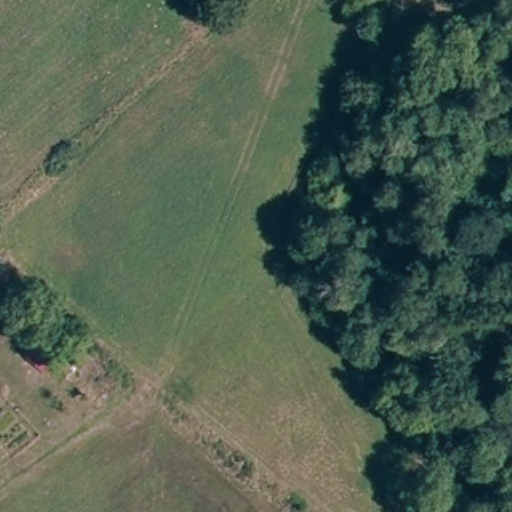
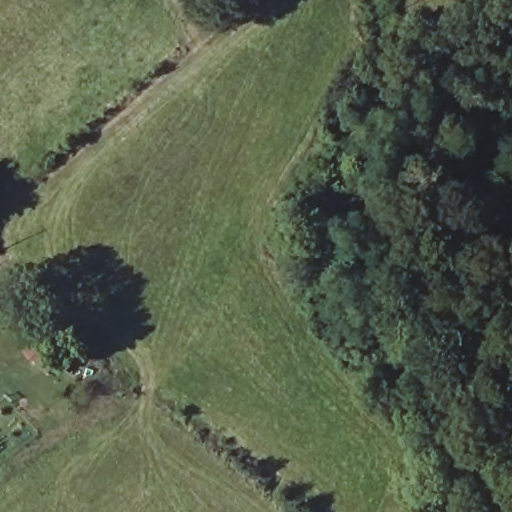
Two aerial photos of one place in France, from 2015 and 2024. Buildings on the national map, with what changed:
[]

